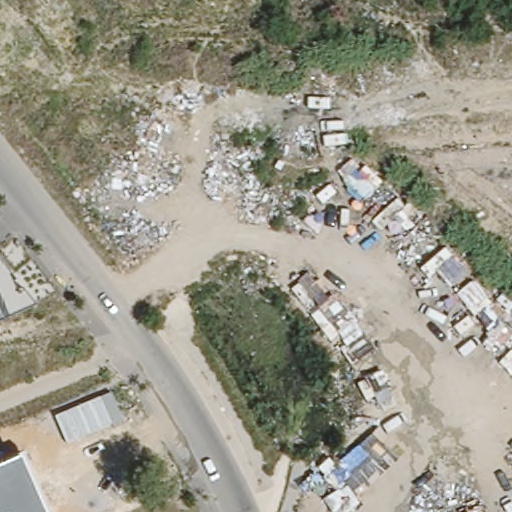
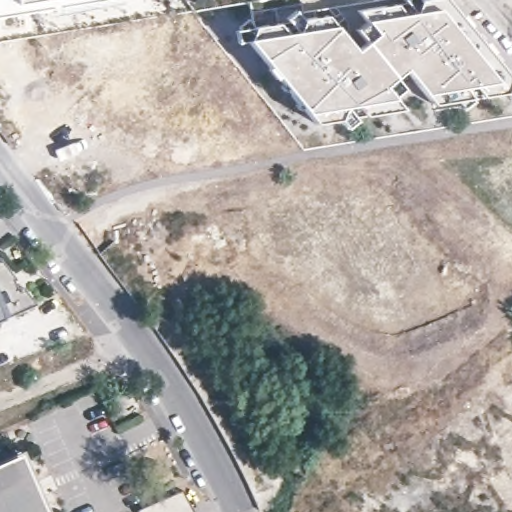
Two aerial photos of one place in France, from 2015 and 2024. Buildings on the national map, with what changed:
new [(0,0),(101,0),(0,17),(0,0)]
new [(334,25),(355,51),(376,33),(366,21),(439,8),(496,81),(426,93),(405,69),(383,86),(393,98),(306,111),(248,41),(334,25)]
unchanged [(0,320),(0,258),(16,280),(13,281),(16,288),(23,285),(35,302),(6,317),(0,320)]
unchanged [(0,463),(20,454),(46,512),(0,512),(0,463)]
new [(194,512),(138,512),(138,511),(183,488),(194,512)]

